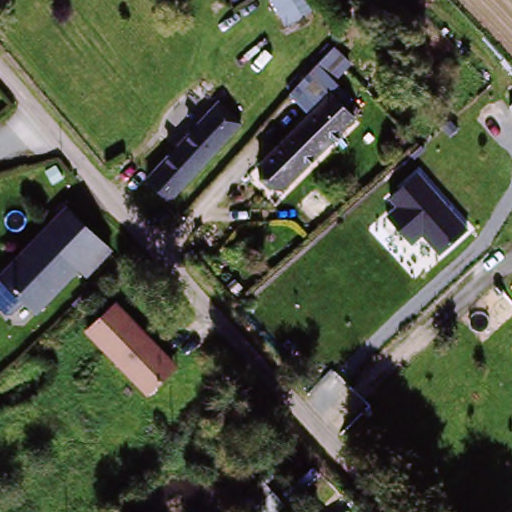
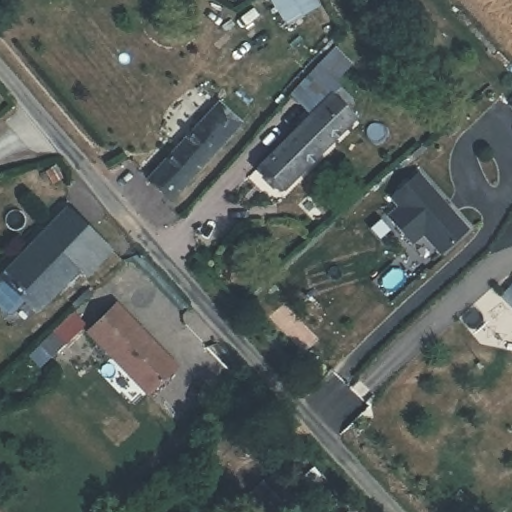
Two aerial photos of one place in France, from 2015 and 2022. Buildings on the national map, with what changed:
unchanged [(269,0),(292,0),(302,16),(285,27),(269,0)]
unchanged [(332,108),(344,120),(276,187),(266,177),(255,165),(305,115),(285,96),(286,96),(312,65),(325,51),(340,63),(325,79),(343,95),(332,108)]
unchanged [(226,115),(247,135),(177,211),(155,191),(226,115)]
unchanged [(440,254),(422,234),(412,244),(412,242),(389,216),(397,210),(387,200),(417,174),(465,231),(440,254)]
unchanged [(40,315),(4,284),(65,214),(112,255),(88,282),(77,272),(40,315)]
unchanged [(174,367),(150,393),(89,334),(117,306),(156,343),(177,363),(174,367)]
unchanged [(227,418),(269,460),(259,470),(247,459),(244,462),(214,431),(227,418)]

